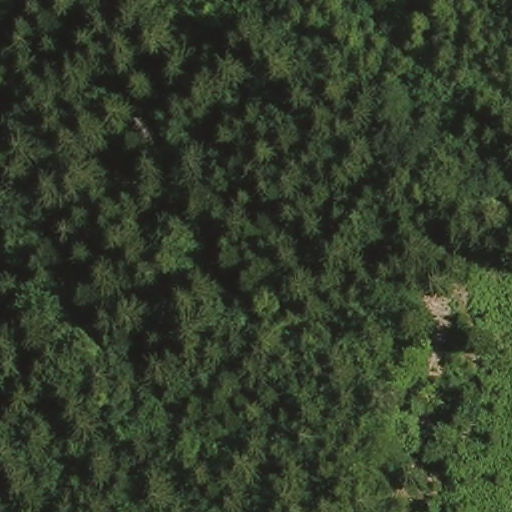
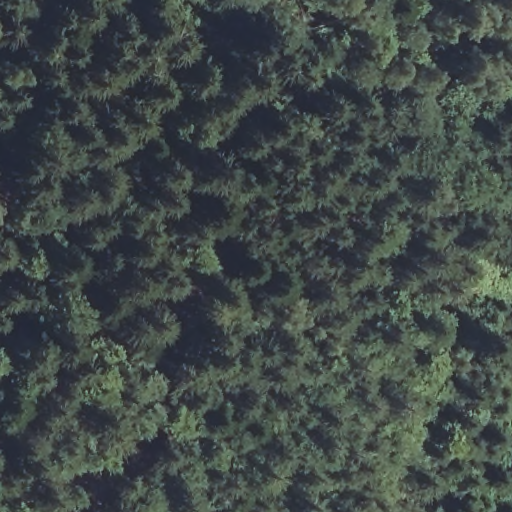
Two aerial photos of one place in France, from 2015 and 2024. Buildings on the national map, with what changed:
[]

